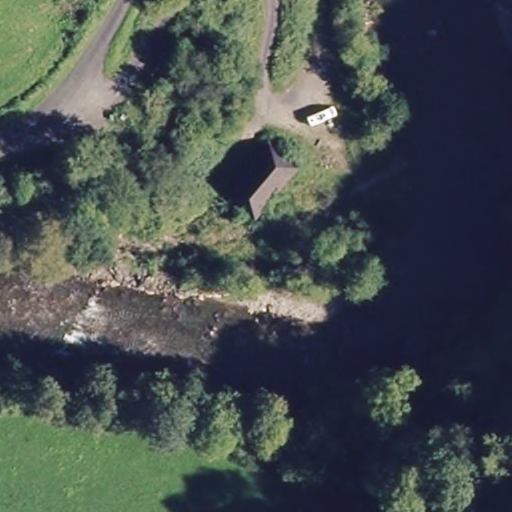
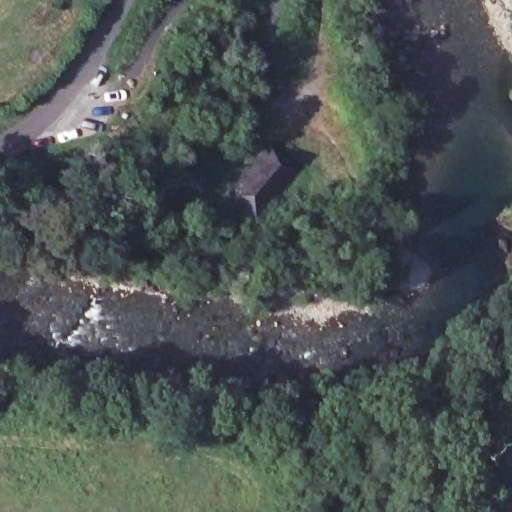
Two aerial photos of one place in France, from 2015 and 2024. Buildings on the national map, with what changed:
unchanged [(278,140),(310,169),(265,219),(231,194),(262,153),(278,140)]

